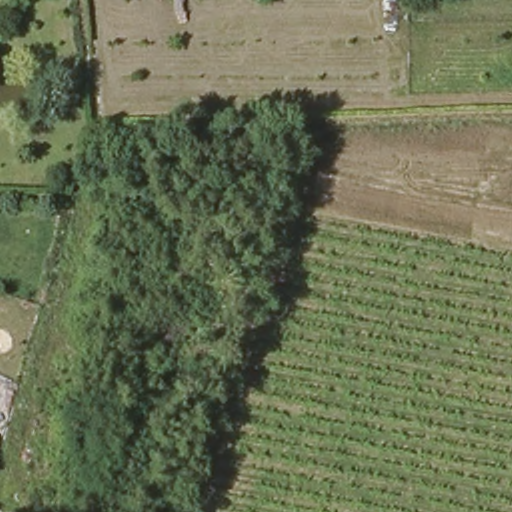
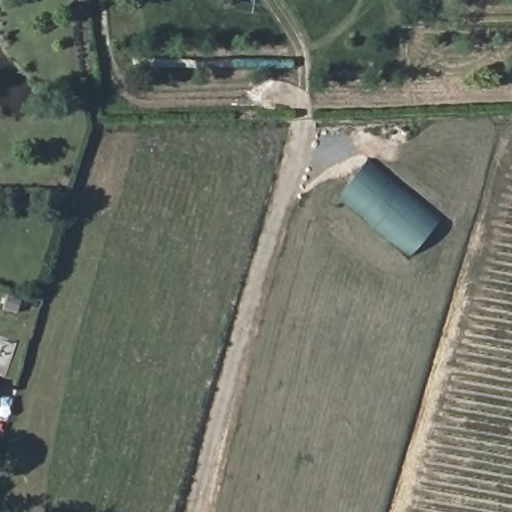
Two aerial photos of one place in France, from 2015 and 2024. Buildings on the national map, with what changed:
new [(408,259),(336,198),(369,160),(437,219),(408,259)]

